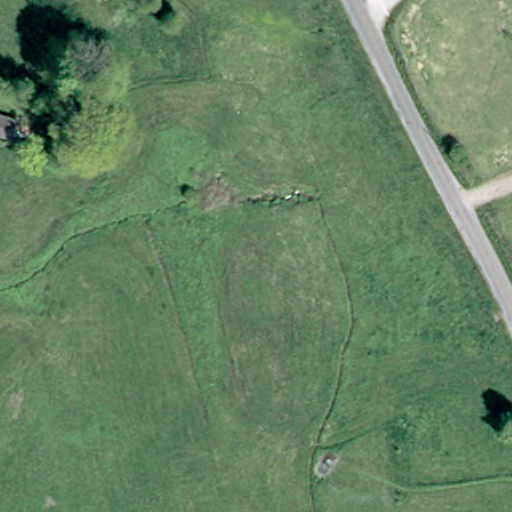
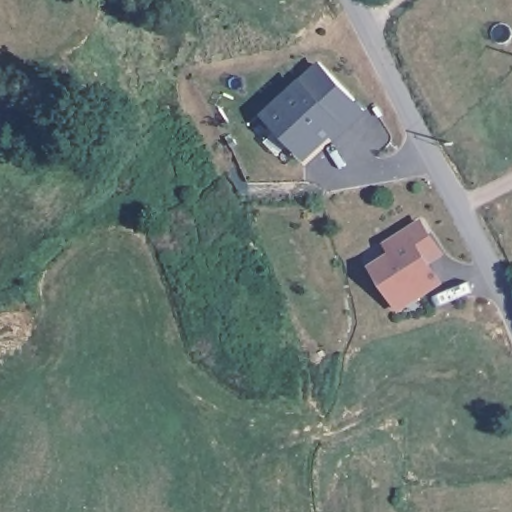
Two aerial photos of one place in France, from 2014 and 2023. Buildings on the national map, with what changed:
new [(307,162),(263,115),(301,79),(320,62),(366,113),(335,141),(333,137),(307,162)]
unchanged [(13,137),(11,136),(0,132),(0,115),(19,122),(18,124),(25,126),(37,130),(33,142),(34,145),(13,137)]
unchanged [(64,134),(83,115),(89,121),(92,124),(72,142),(66,137),(64,134)]
new [(382,242),(421,217),(442,250),(430,260),(443,283),(399,312),(369,265),(389,252),(382,242)]

